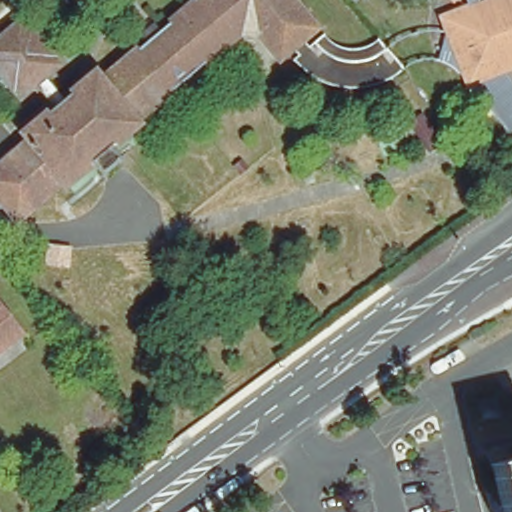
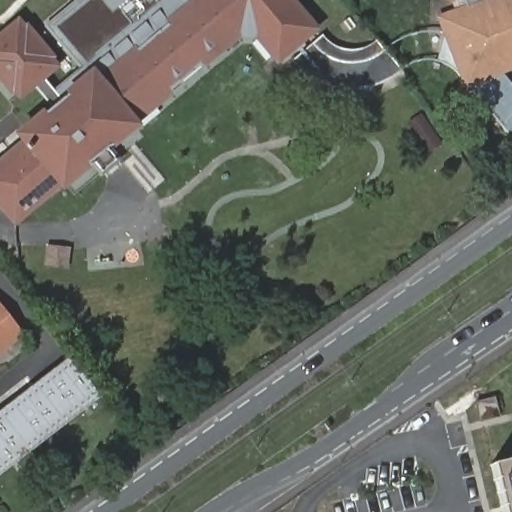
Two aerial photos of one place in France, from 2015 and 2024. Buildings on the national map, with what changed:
unchanged [(89,167),(63,188),(61,187),(15,225),(0,206),(0,166),(24,145),(19,138),(49,113),(30,90),(19,101),(0,79),(0,39),(19,22),(57,68),(44,79),(63,101),(90,79),(94,75),(101,82),(201,0),(289,0),(315,31),(303,42),(309,49),(314,45),(354,13),(387,53),(404,74),(398,77),(386,84),(379,87),(366,91),(354,92),(342,92),(329,90),(323,87),(318,84),(311,80),(305,75),(301,71),(293,62),(296,59),(291,53),(278,63),(250,30),(136,124),(138,127),(111,149),(123,163),(101,180),(89,167)]
new [(201,0),(101,82),(94,75),(90,79),(45,26),(78,0),(201,0)]
unchanged [(459,77),(451,71),(450,44),(463,41),(474,17),(468,0),(497,0),(499,4),(512,0),(512,77),(509,78),(512,83),(512,139),(459,77)]
unchanged [(452,0),(467,0),(458,5),(452,0)]
demolished [(258,116),(274,137),(254,153),(238,132),(258,116)]
unchanged [(0,349),(0,301),(23,331),(0,349)]
new [(102,396),(0,475),(0,410),(70,355),(102,396)]
unchanged [(497,396),(501,414),(479,419),(476,401),(497,396)]
unchanged [(512,466),(512,512),(501,512),(491,471),(512,466)]

